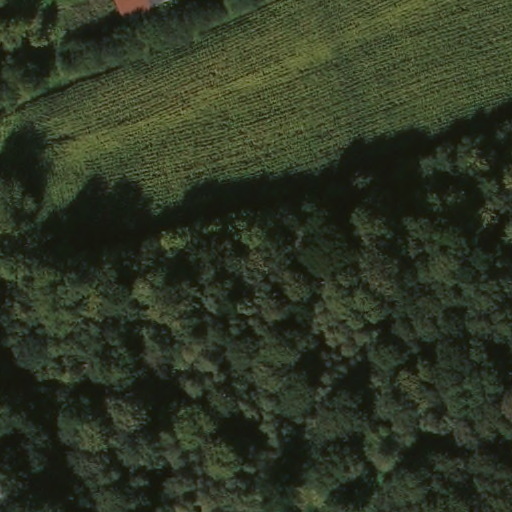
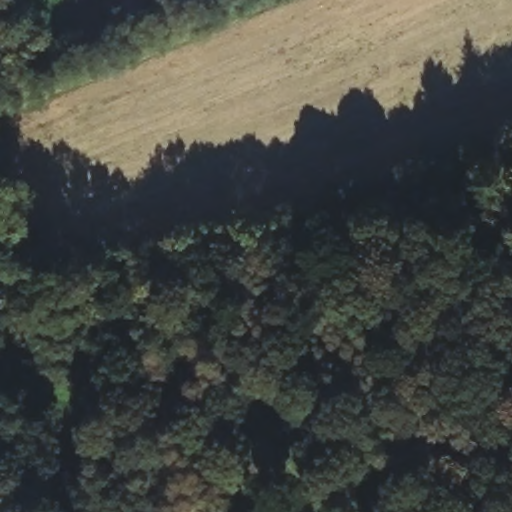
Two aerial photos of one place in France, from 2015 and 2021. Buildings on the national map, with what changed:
unchanged [(131,20),(122,0),(176,0),(131,20)]

